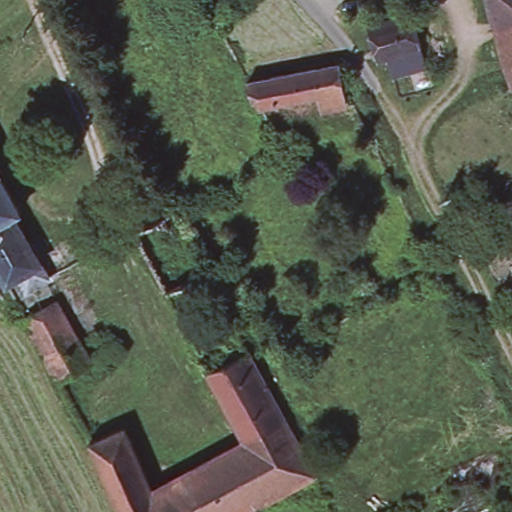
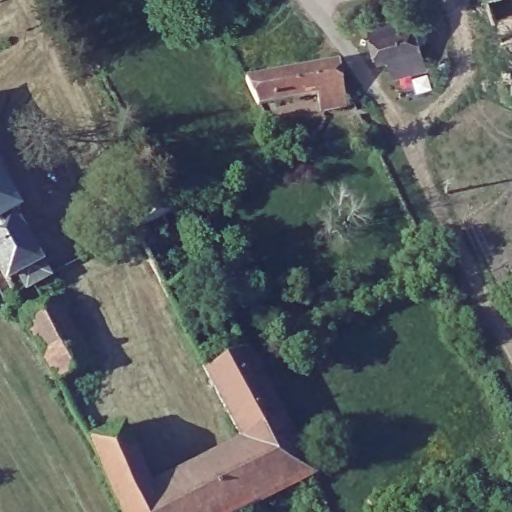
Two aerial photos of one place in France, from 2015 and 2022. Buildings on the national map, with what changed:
unchanged [(487,0),(512,0),(512,86),(487,0)]
unchanged [(412,11),(427,61),(393,72),(388,54),(378,57),(367,22),(412,11)]
unchanged [(245,78),(335,61),(342,102),(342,105),(317,110),(315,92),(257,103),(242,78),(245,78)]
unchanged [(10,213),(45,275),(23,287),(15,274),(2,281),(0,277),(0,181),(17,209),(10,213)]
unchanged [(129,233),(170,211),(202,275),(162,297),(129,233)]
unchanged [(202,275),(243,352),(202,374),(162,297),(202,275)]
unchanged [(53,297),(88,361),(54,379),(20,316),(53,297)]
unchanged [(243,352),(252,371),(280,422),(239,443),(202,374),(243,352)]
unchanged [(185,472),(202,463),(208,460),(239,443),(280,422),(310,477),(244,512),(157,512),(148,491),(185,472)]
unchanged [(120,429),(142,479),(110,494),(87,444),(120,429)]
unchanged [(148,491),(157,512),(118,512),(110,494),(142,479),(148,491)]

